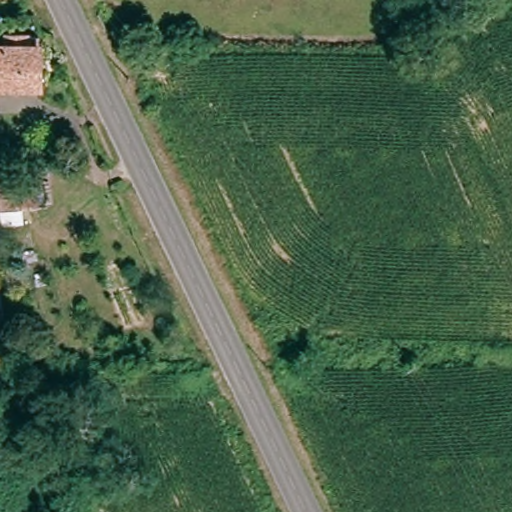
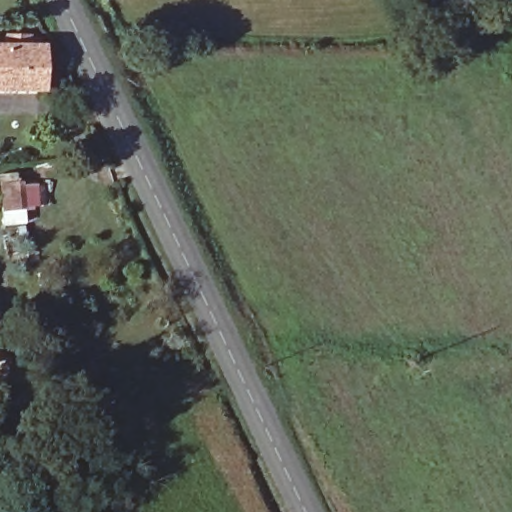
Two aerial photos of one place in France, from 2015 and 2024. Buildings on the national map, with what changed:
unchanged [(7,51),(7,42),(38,43),(37,92),(0,91),(0,50),(7,51)]
unchanged [(17,215),(0,218),(0,214),(0,194),(14,192),(17,215)]

